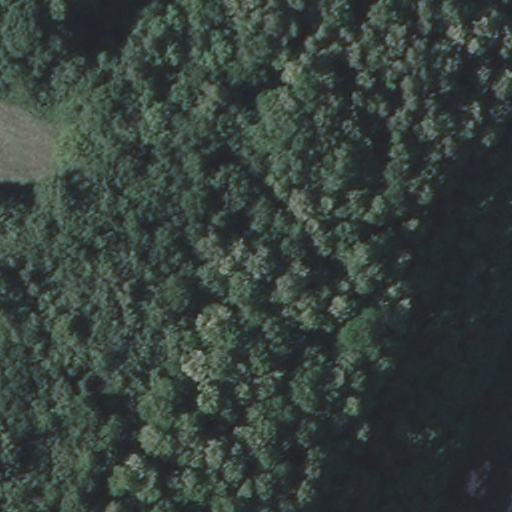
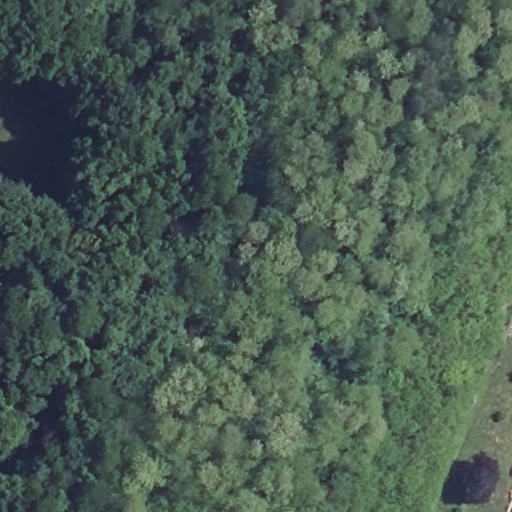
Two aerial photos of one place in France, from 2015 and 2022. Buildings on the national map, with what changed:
[]

